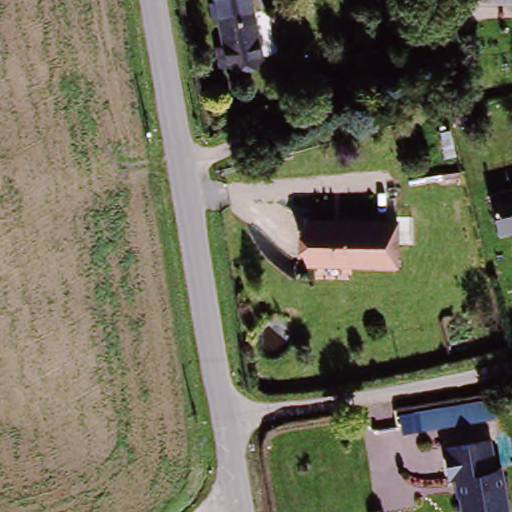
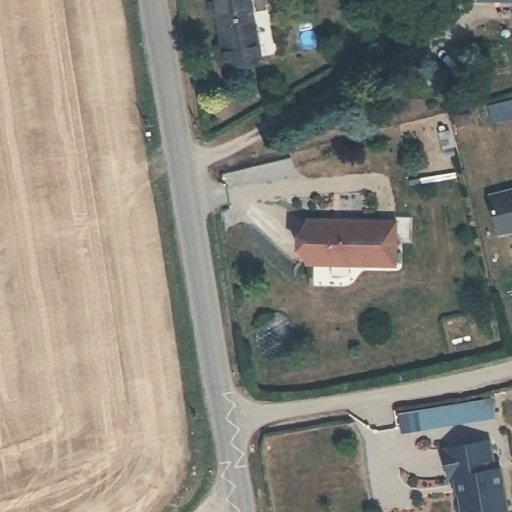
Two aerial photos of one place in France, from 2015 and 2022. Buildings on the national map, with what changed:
unchanged [(227,55),(217,0),(250,0),(259,49),(262,63),(230,69),(227,55)]
unchanged [(437,1),(437,0),(512,0),(512,3),(437,1)]
unchanged [(497,235),(487,195),(512,189),(512,232),(497,235)]
unchanged [(303,224),(368,222),(388,221),(389,264),(369,265),(303,269),(303,224)]
unchanged [(401,436),(397,414),(490,399),(493,419),(401,436)]
unchanged [(447,477),(442,444),(485,439),(490,472),(498,471),(504,512),(459,512),(453,476),(447,477)]

